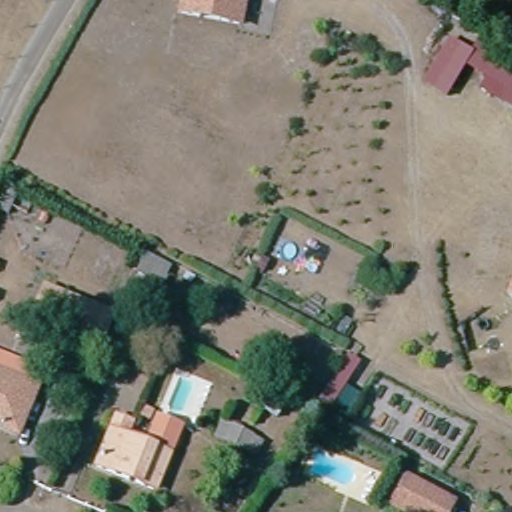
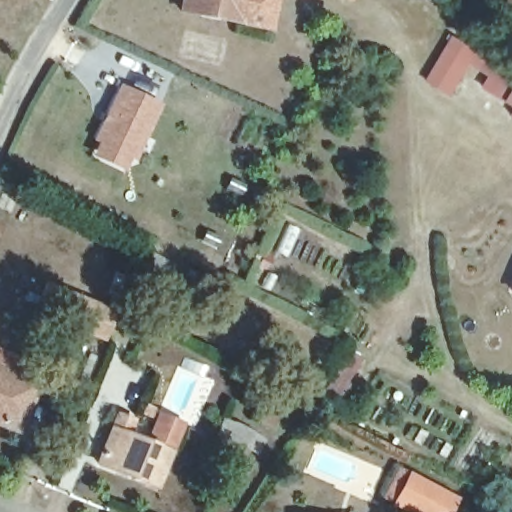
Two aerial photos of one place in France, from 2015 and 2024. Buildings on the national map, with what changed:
unchanged [(176,19),(179,0),(249,0),(244,28),(176,19)]
unchanged [(512,61),(512,107),(479,89),(483,80),(464,70),(446,94),(422,83),(449,32),(512,61)]
new [(96,143),(91,140),(118,83),(159,102),(126,172),(91,156),(96,143)]
unchanged [(0,217),(0,188),(10,193),(0,217)]
unchanged [(154,285),(131,273),(140,256),(163,268),(154,285)]
unchanged [(115,311),(103,349),(28,322),(42,283),(115,311)]
unchanged [(0,420),(0,363),(40,378),(34,395),(22,428),(8,423),(0,420)]
unchanged [(148,413),(139,411),(142,402),(150,405),(148,413)]
unchanged [(128,433),(170,448),(158,483),(100,463),(117,409),(133,414),(128,433)]
unchanged [(185,424),(175,452),(169,451),(170,448),(146,439),(157,413),(185,424)]
unchanged [(444,512),(421,512),(393,498),(384,493),(397,466),(407,470),(453,494),(444,512)]

